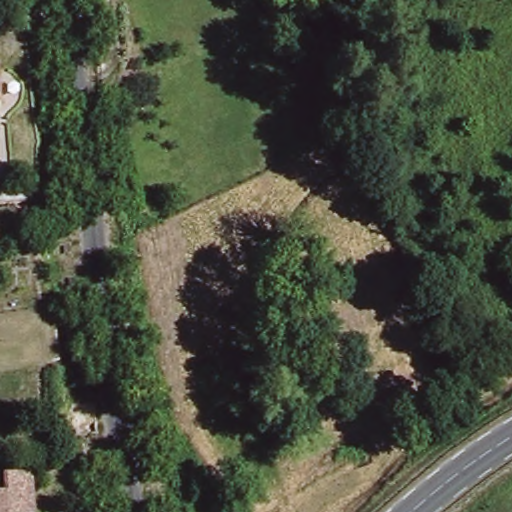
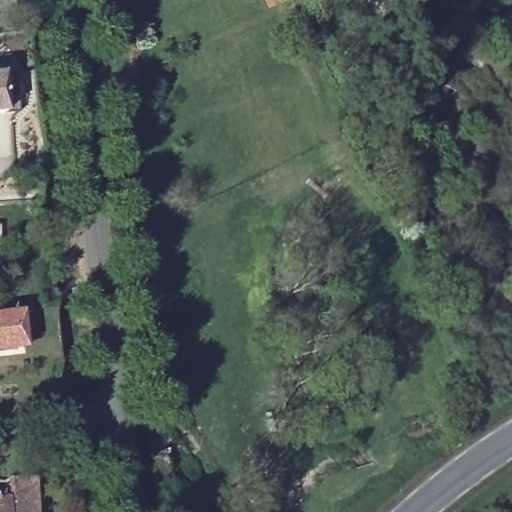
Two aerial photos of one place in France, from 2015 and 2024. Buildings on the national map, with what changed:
unchanged [(0,116),(0,99),(1,116),(0,116)]
new [(25,349),(0,352),(0,312),(20,310),(25,349)]
unchanged [(6,501),(5,479),(31,477),(34,512),(7,512),(6,501)]
unchanged [(0,501),(6,501),(7,512),(0,512),(0,501)]

